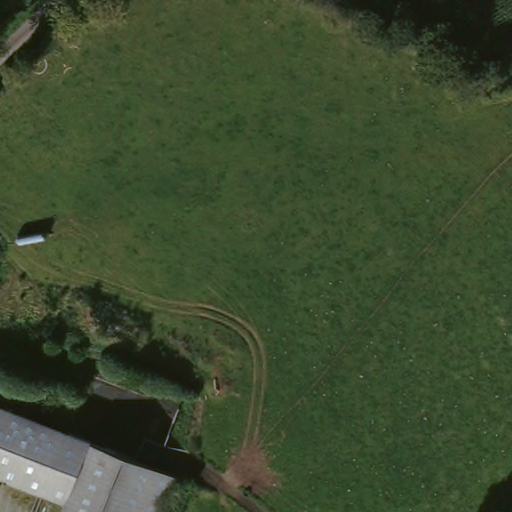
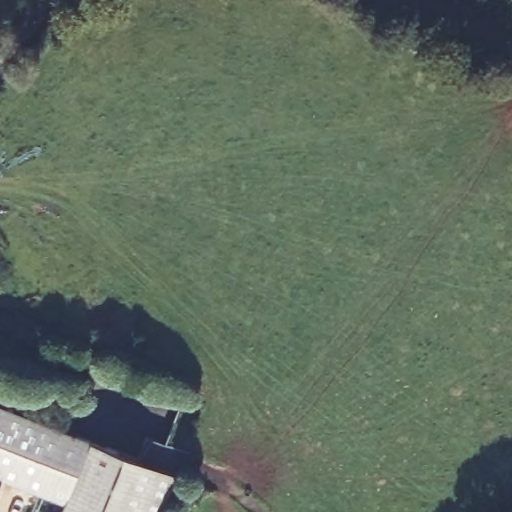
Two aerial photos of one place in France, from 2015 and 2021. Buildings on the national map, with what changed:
unchanged [(161,512),(57,512),(60,505),(0,480),(0,410),(174,481),(161,512)]

